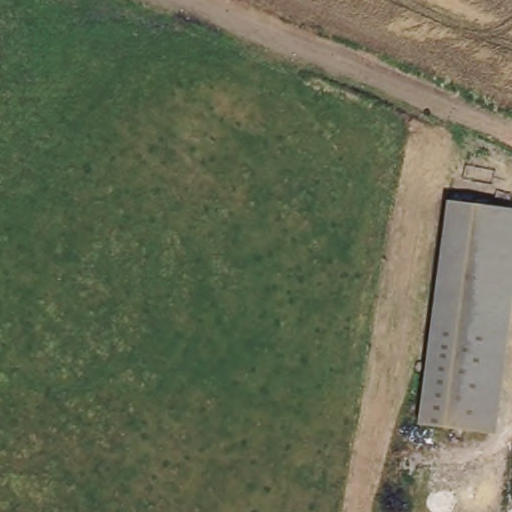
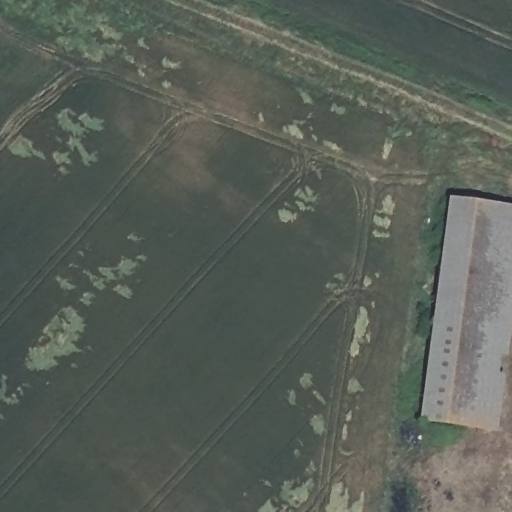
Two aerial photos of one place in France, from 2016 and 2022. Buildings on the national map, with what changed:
unchanged [(512,237),(487,433),(427,426),(457,203),(512,210),(512,237)]

